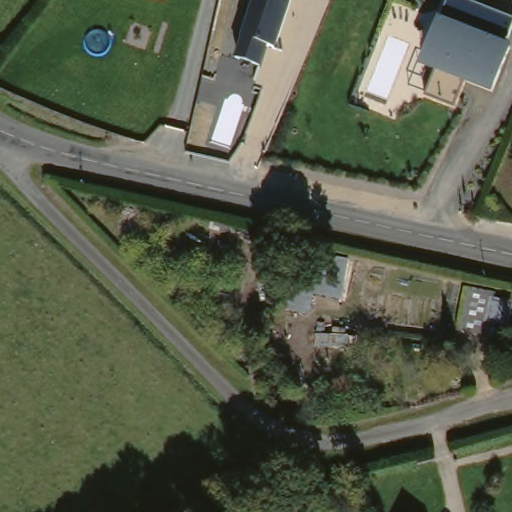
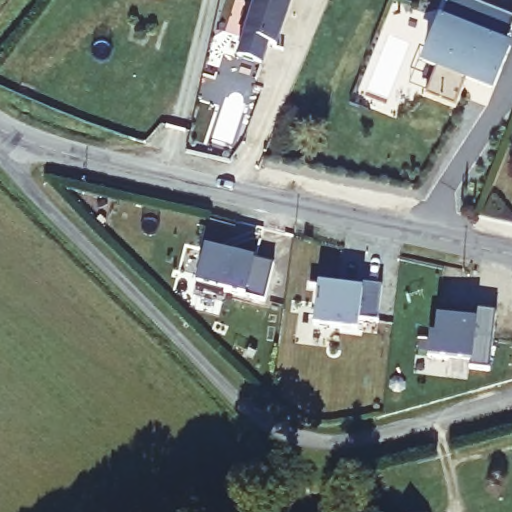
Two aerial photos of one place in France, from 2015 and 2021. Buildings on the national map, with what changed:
unchanged [(253,0),(299,0),(285,52),(273,50),(270,71),(238,57),(253,0)]
unchanged [(425,70),(443,16),(448,0),(466,0),(512,15),(512,20),(505,39),(512,42),(496,93),(465,86),(457,104),(430,94),(436,73),(425,70)]
new [(204,249),(231,255),(232,252),(252,257),(252,258),(272,263),(262,300),(222,291),(221,295),(194,288),(204,249)]
demolished [(287,311),(302,255),(346,262),(332,317),(287,311)]
new [(319,284),(362,290),(362,283),(382,287),(378,323),(359,322),(358,335),(315,329),(319,284)]
new [(439,338),(442,312),(464,315),(479,317),(480,312),(499,315),(492,374),(472,372),(472,366),(431,361),(434,338),(439,338)]

